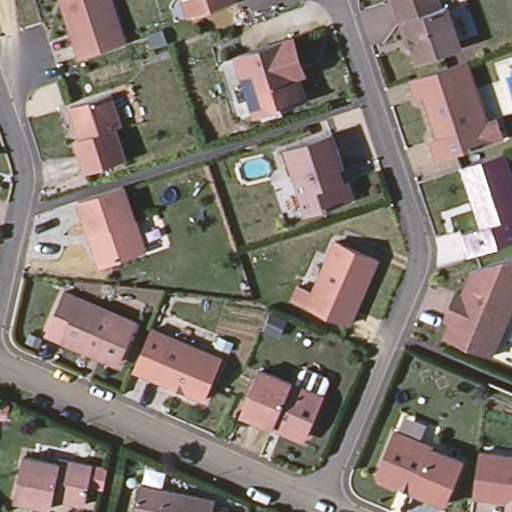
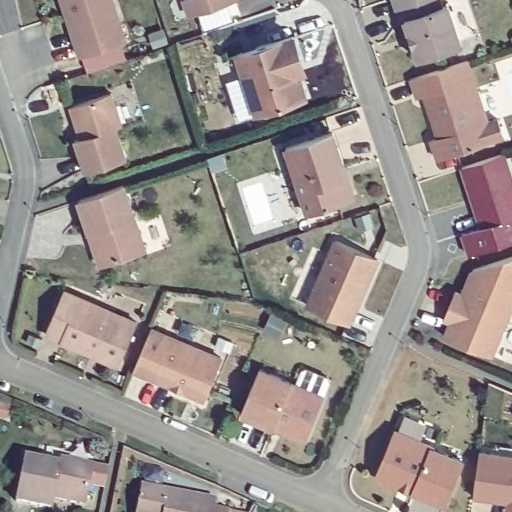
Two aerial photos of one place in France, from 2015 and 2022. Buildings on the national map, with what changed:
unchanged [(87,52),(69,0),(118,0),(130,36),(87,52)]
unchanged [(242,0),(195,16),(190,0),(242,0)]
unchanged [(446,0),(448,0),(453,0),(466,39),(419,55),(414,40),(406,16),(401,0),(446,0)]
unchanged [(264,109),(243,49),(295,31),(302,53),(307,65),(299,69),(307,94),(264,109)]
unchanged [(472,55),(494,115),(504,112),(510,130),(444,153),(437,135),(447,131),(432,88),(422,91),(416,74),(472,55)]
unchanged [(110,91),(121,123),(114,126),(125,157),(87,170),(77,139),(80,137),(70,105),(110,91)]
unchanged [(357,189),(354,196),(315,210),(291,142),(337,127),(357,189)]
unchanged [(512,159),(512,237),(476,250),(468,229),(487,221),(467,162),(508,148),(512,159)]
unchanged [(95,229),(84,195),(127,180),(149,245),(110,259),(106,261),(95,229)]
unchanged [(383,259),(355,323),(312,305),(341,240),(383,259)]
unchanged [(512,312),(494,352),(449,333),(460,307),(452,303),(460,286),(467,290),(476,271),(512,259),(512,312)]
unchanged [(136,321),(118,365),(45,334),(62,291),(136,321)]
unchanged [(177,332),(159,375),(139,366),(157,324),(177,332)]
unchanged [(177,332),(227,353),(210,395),(190,388),(192,383),(177,376),(175,381),(159,375),(177,332)]
unchanged [(242,413),(261,368),(325,396),(310,435),(300,437),(287,432),(275,427),(242,413)]
unchanged [(465,459),(447,502),(417,489),(419,485),(407,480),(397,485),(385,480),(382,471),(400,428),(407,410),(444,425),(436,443),(435,446),(465,459)]
unchanged [(49,495),(54,460),(54,455),(56,440),(87,443),(85,459),(80,498),(49,495)]
unchanged [(474,495),(480,450),(512,454),(512,512),(507,512),(509,500),(474,495)]
unchanged [(49,495),(47,505),(11,500),(17,455),(54,460),(49,495)]
unchanged [(139,487),(215,499),(212,512),(136,512),(139,487)]

